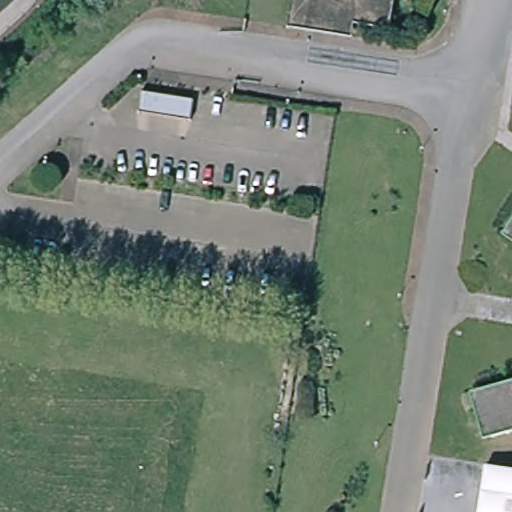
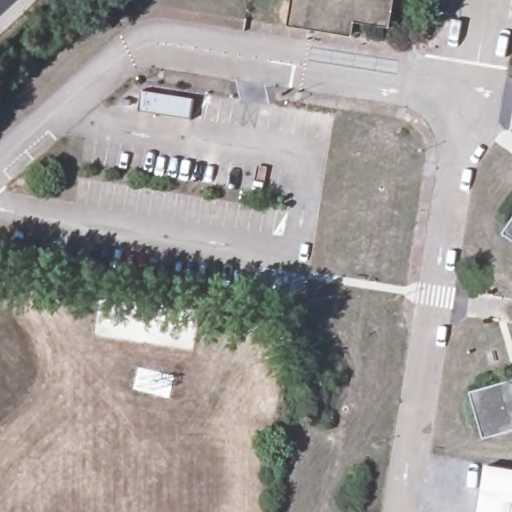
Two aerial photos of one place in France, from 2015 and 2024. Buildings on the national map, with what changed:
unchanged [(288,31),(292,0),(398,0),(393,31),(355,25),(353,41),(288,31)]
unchanged [(191,121),(141,114),(144,94),(194,102),(191,121)]
unchanged [(512,213),(512,244),(498,234),(512,213)]
unchanged [(468,391),(512,378),(512,427),(480,437),(468,391)]
unchanged [(512,470),(512,512),(477,512),(485,465),(512,470)]

